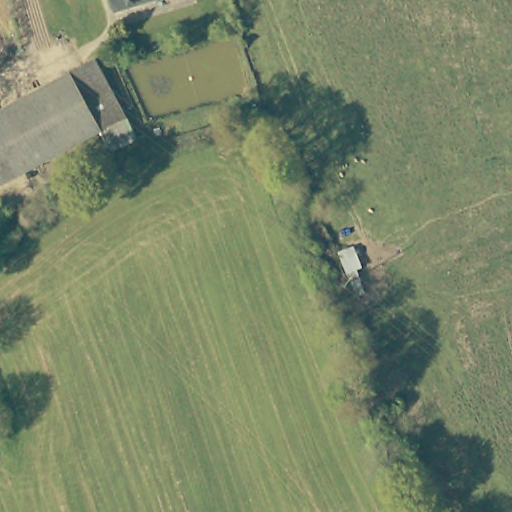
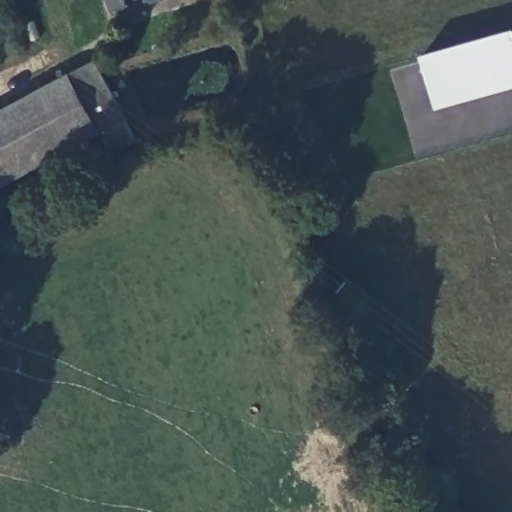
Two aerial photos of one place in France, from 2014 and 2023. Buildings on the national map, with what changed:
unchanged [(109,0),(147,0),(112,11),(109,0)]
new [(512,89),(437,110),(422,57),(512,31),(512,89)]
unchanged [(92,60),(123,117),(0,184),(0,110),(92,60)]

